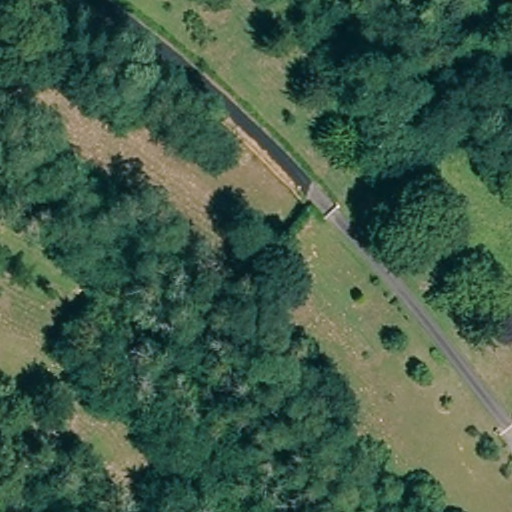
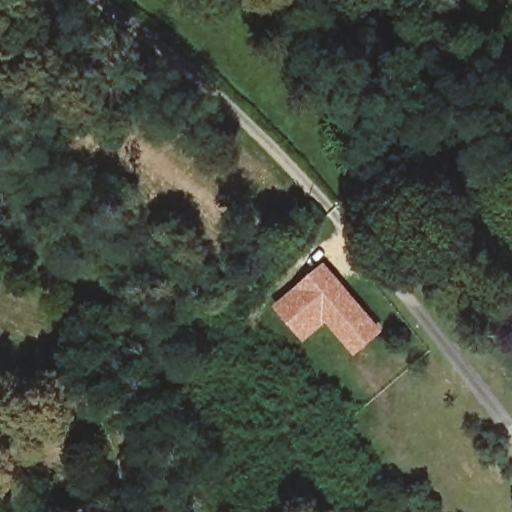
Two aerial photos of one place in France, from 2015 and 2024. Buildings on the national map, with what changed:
new [(324,261),(384,330),(355,356),(327,323),(304,342),(273,305),(324,261)]

